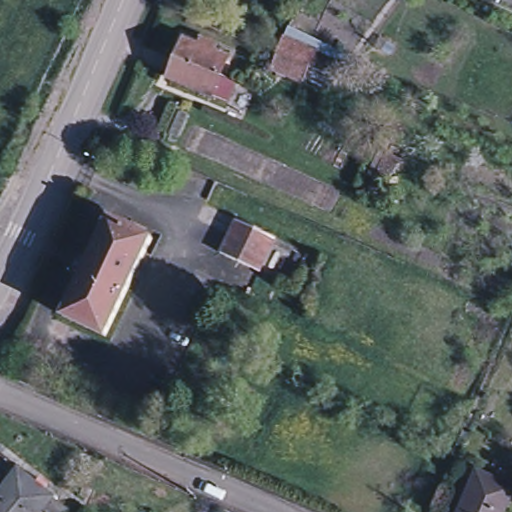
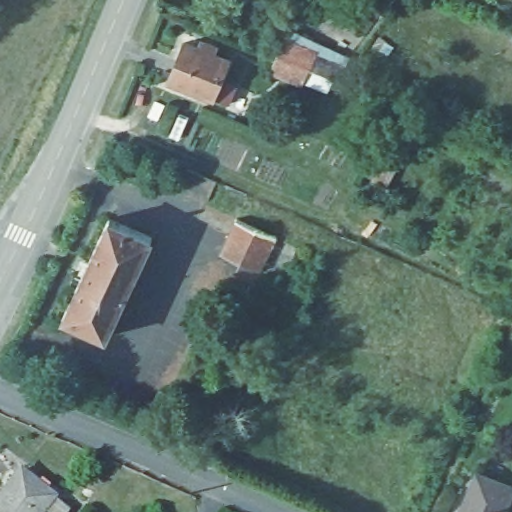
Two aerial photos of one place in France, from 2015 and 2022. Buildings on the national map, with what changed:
unchanged [(271,67),(277,53),(283,38),(315,52),(343,65),(338,79),(309,66),(302,81),(271,67)]
unchanged [(226,100),(211,94),(168,76),(184,40),(200,46),(202,40),(213,44),(210,51),(226,57),(218,76),(233,83),(226,100)]
unchanged [(401,156),(387,184),(377,179),(391,151),(401,156)]
unchanged [(155,236),(133,285),(91,266),(113,217),(155,236)]
unchanged [(275,236),(258,272),(219,252),(235,218),(275,236)]
unchanged [(133,285),(110,336),(68,315),(91,266),(133,285)]
unchanged [(50,495),(65,507),(61,512),(41,512),(38,510),(37,512),(0,512),(0,490),(15,469),(50,495)]
unchanged [(512,502),(508,512),(466,512),(482,474),(512,487),(512,502)]

